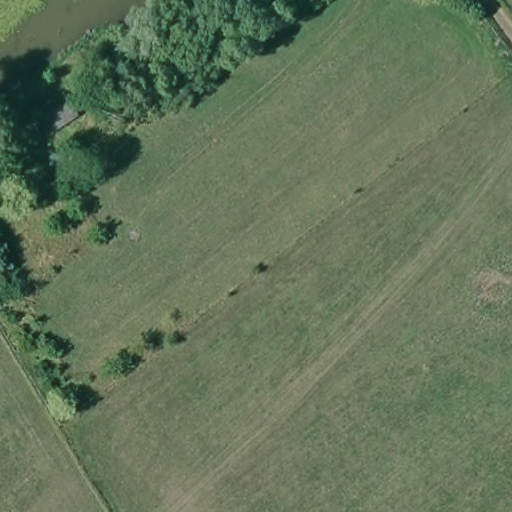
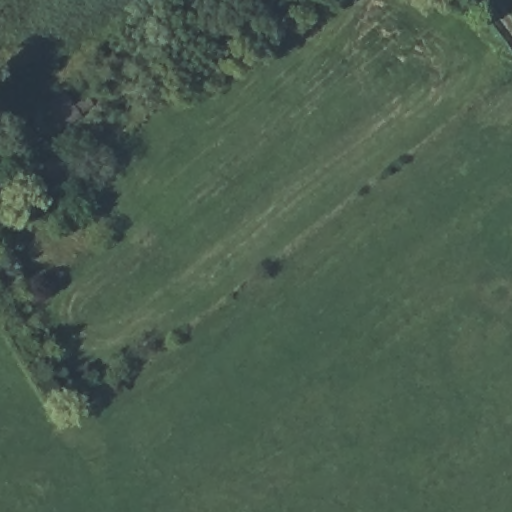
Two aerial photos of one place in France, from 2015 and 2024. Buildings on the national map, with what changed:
unchanged [(68,92),(83,119),(52,138),(38,112),(68,92)]

